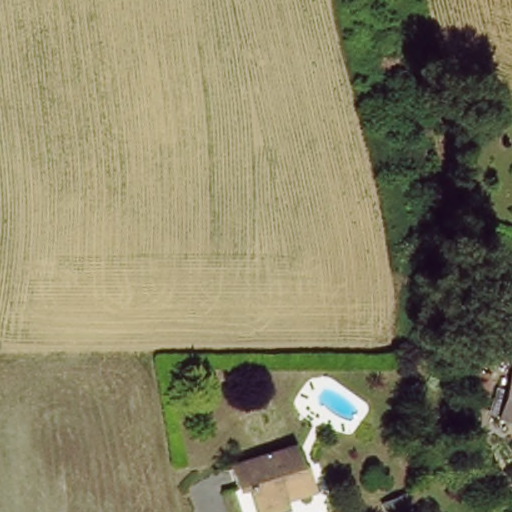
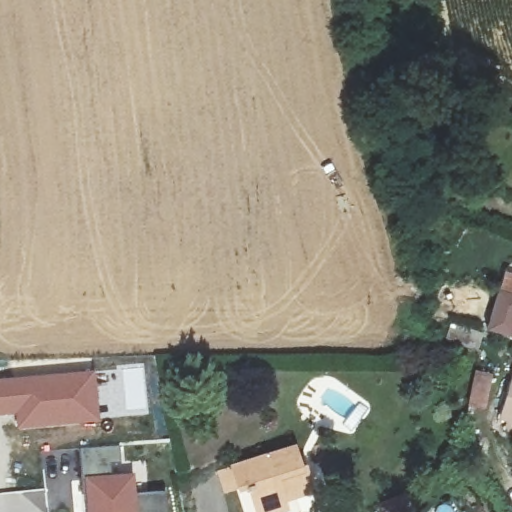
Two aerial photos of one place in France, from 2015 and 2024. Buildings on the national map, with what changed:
new [(512,300),(512,317),(505,336),(483,329),(495,294),(512,300)]
new [(95,373),(100,425),(18,431),(16,416),(0,417),(0,381),(95,373)]
unchanged [(512,384),(512,414),(503,411),(512,384)]
unchanged [(289,495),(293,507),(279,512),(263,512),(256,483),(246,486),(240,464),(298,448),(305,470),(310,466),(318,487),(289,495)]
new [(121,449),(122,464),(147,463),(150,495),(167,494),(168,512),(88,512),(81,451),(121,449)]

